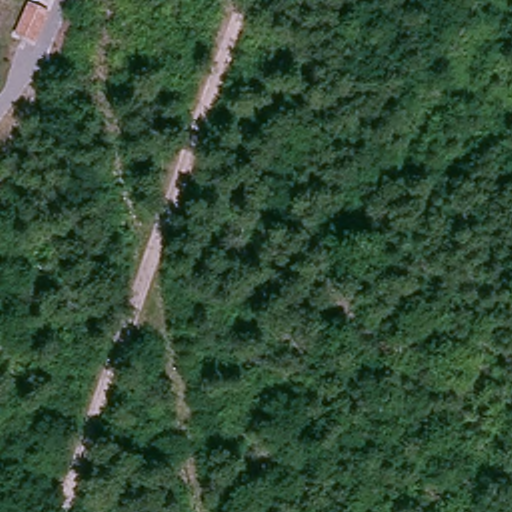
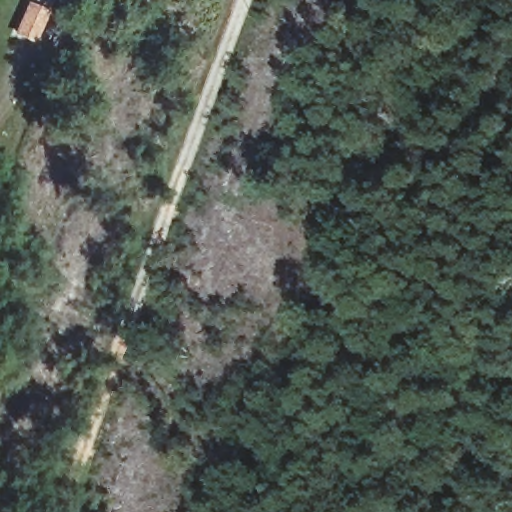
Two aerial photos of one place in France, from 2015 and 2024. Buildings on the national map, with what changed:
unchanged [(32,32),(16,26),(28,0),(34,0),(44,4),(32,32)]

